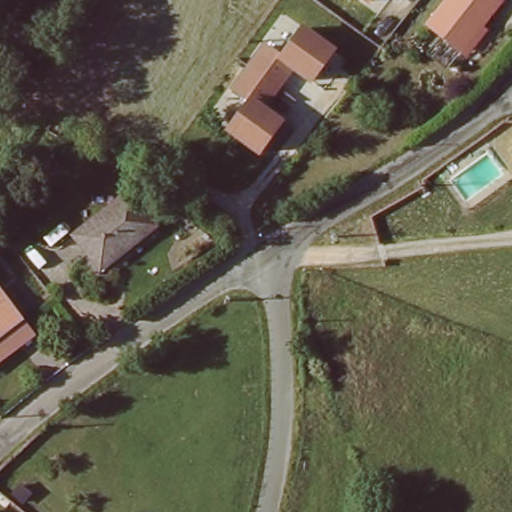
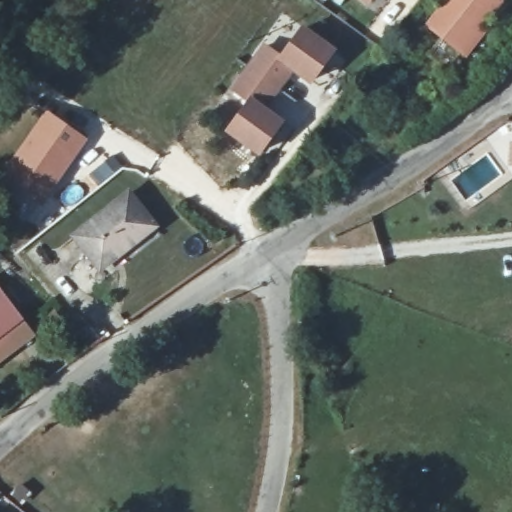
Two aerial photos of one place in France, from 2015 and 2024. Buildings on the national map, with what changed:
unchanged [(465,64),(459,59),(425,33),(451,0),(498,0),(492,6),(496,9),(475,37),(481,42),(465,64)]
unchanged [(266,107),(284,119),(264,148),(233,127),(255,98),(238,86),(253,65),(269,43),(285,54),(306,25),(336,46),(314,76),(296,64),(282,85),(266,107)]
new [(45,108),(88,138),(42,199),(0,170),(45,108)]
unchanged [(125,195),(154,227),(102,275),(73,242),(125,195)]
unchanged [(17,325),(0,338),(0,301),(17,325)]

